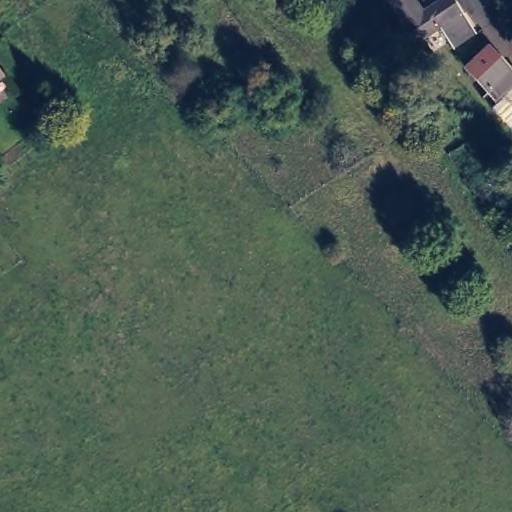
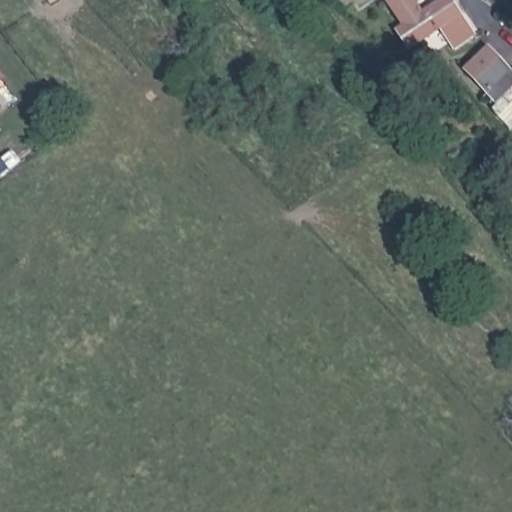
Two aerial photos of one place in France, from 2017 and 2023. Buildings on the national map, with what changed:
unchanged [(410,41),(399,25),(405,20),(391,0),(418,0),(423,7),(434,0),(456,0),(475,27),(456,42),(441,21),(410,41)]
unchanged [(472,81),(496,61),(512,79),(512,91),(495,106),(472,81)]
unchanged [(0,73),(0,70),(2,72),(0,73)]

